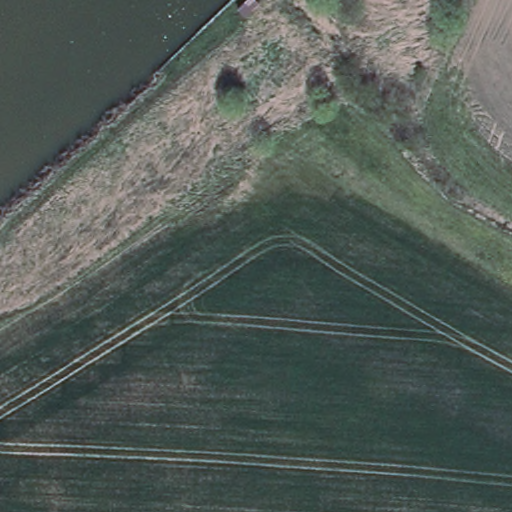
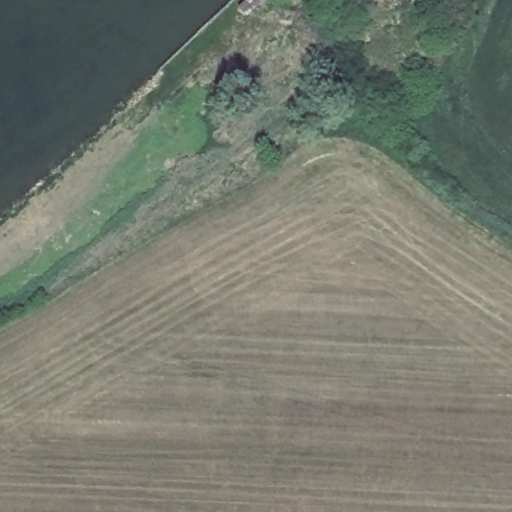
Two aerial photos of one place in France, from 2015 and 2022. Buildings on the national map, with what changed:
unchanged [(247,16),(238,7),(246,0),(257,0),(260,4),(247,16)]

